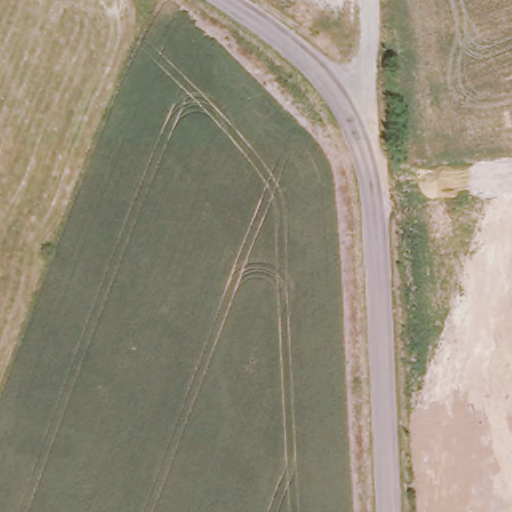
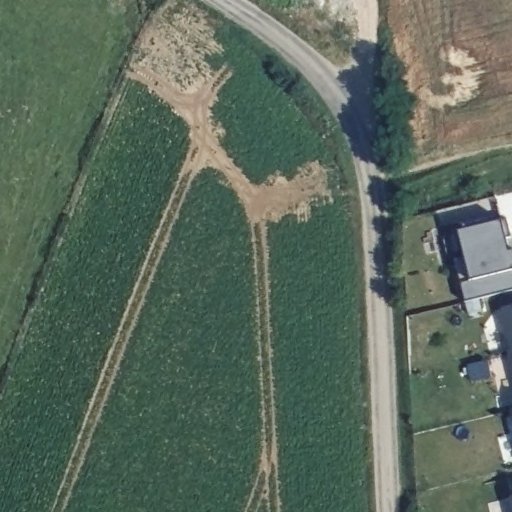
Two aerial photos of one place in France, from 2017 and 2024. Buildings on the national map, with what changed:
new [(506,220),(511,237),(506,238),(510,251),(512,251),(512,292),(465,303),(455,261),(464,258),(457,231),(506,220)]
new [(502,309),(512,307),(512,348),(502,309)]
new [(511,351),(512,350),(512,356),(511,351)]
new [(511,411),(512,411),(512,416),(511,411)]

